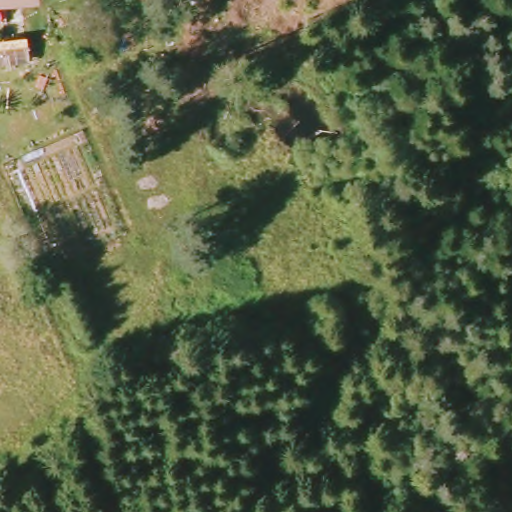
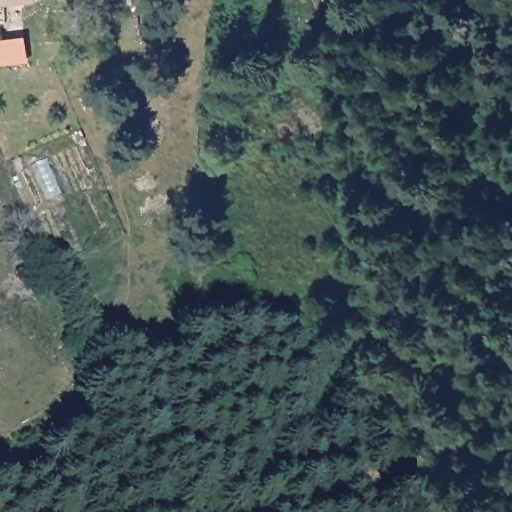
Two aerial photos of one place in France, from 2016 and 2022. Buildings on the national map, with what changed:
unchanged [(0,0),(14,0),(0,1),(0,0)]

